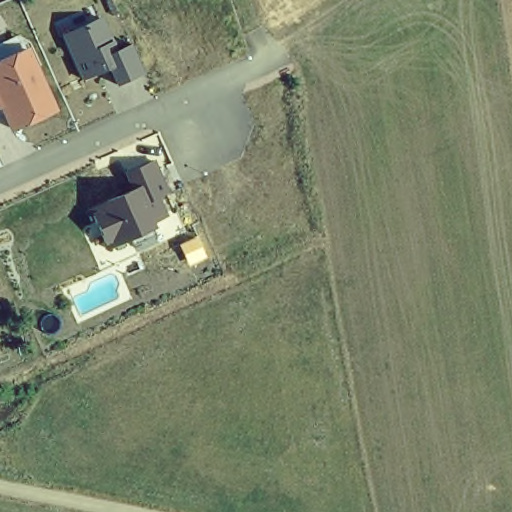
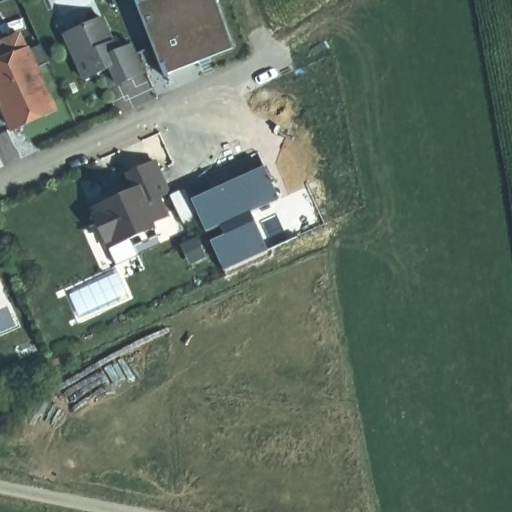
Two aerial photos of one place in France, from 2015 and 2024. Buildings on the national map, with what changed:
new [(166,77),(135,0),(215,0),(234,48),(166,77)]
unchanged [(85,80),(65,35),(104,20),(115,51),(135,46),(143,74),(115,84),(108,71),(85,80)]
unchanged [(12,132),(3,108),(0,109),(0,44),(19,36),(26,50),(31,49),(59,110),(12,132)]
unchanged [(92,205),(130,191),(125,177),(157,163),(170,192),(162,196),(168,217),(159,222),(160,226),(111,248),(92,205)]
new [(263,165),(278,198),(250,211),(218,227),(206,232),(190,198),(263,165)]
new [(221,233),(218,227),(250,211),(267,250),(223,271),(208,239),(221,233)]
new [(198,239),(206,259),(190,266),(180,244),(198,239)]

